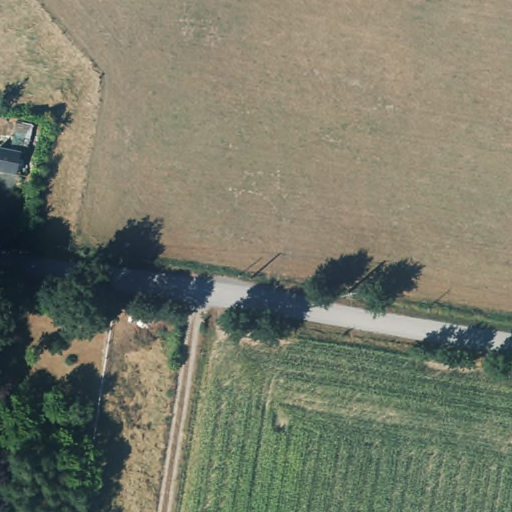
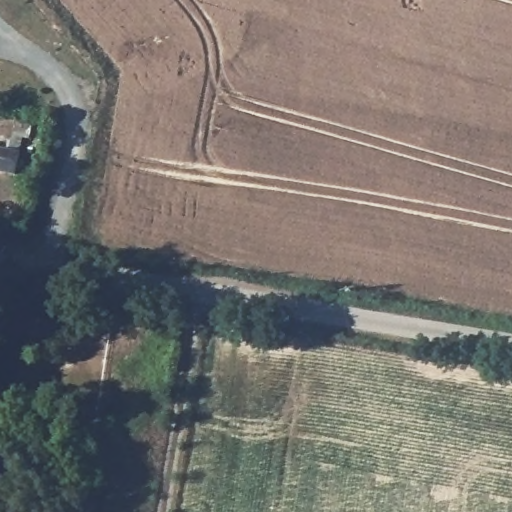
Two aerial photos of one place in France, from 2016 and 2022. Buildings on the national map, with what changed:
unchanged [(17,180),(0,176),(0,154),(21,158),(17,180)]

